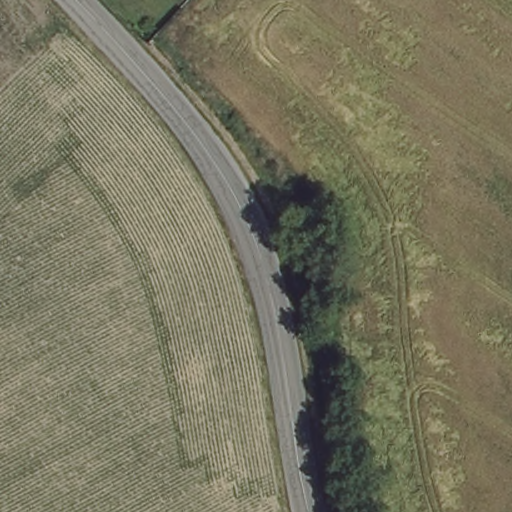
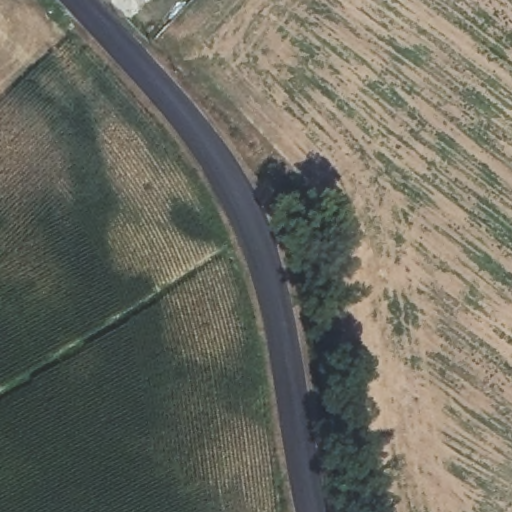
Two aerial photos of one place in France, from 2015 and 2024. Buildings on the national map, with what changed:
unchanged [(281,179),(290,183),(283,189),(277,185),(281,179)]

